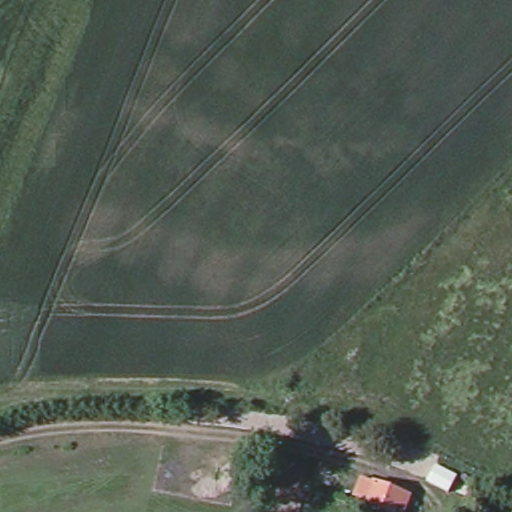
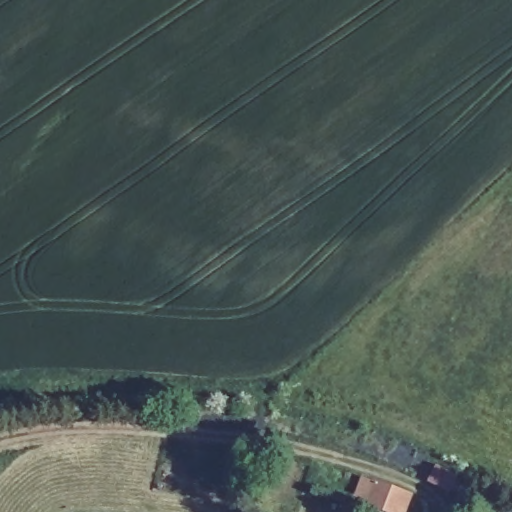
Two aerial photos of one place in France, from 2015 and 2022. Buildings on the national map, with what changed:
unchanged [(370,478),(412,490),(406,512),(391,512),(364,502),(370,478)]

